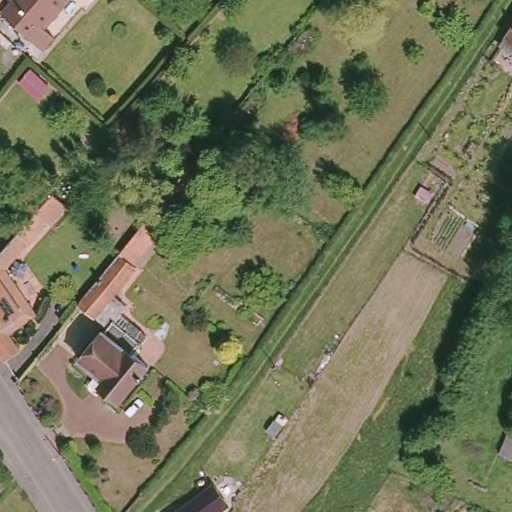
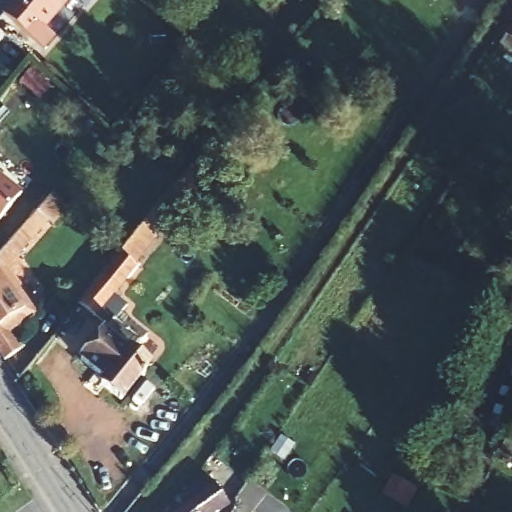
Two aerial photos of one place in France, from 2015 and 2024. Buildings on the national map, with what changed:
unchanged [(14,4),(16,0),(71,0),(46,29),(56,41),(43,52),(5,15),(14,4)]
unchanged [(512,50),(493,36),(512,12),(512,50)]
new [(21,192),(0,220),(0,175),(21,192)]
unchanged [(94,282),(120,249),(123,245),(170,186),(173,183),(182,192),(148,239),(133,260),(136,262),(132,267),(110,296),(122,306),(112,322),(123,331),(130,321),(147,336),(133,354),(146,364),(120,398),(102,384),(107,377),(80,357),(103,325),(77,304),(94,282)]
unchanged [(36,198),(51,213),(2,266),(28,307),(13,317),(28,342),(8,356),(0,344),(0,237),(36,198)]
unchanged [(512,435),(512,465),(502,460),(512,435)]
unchanged [(204,482),(220,501),(206,512),(168,512),(177,504),(204,482)]

